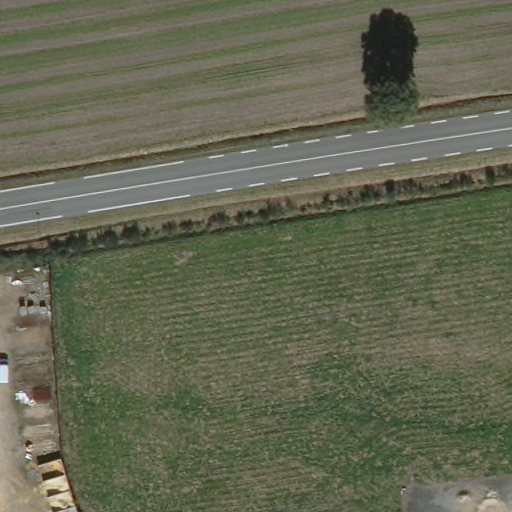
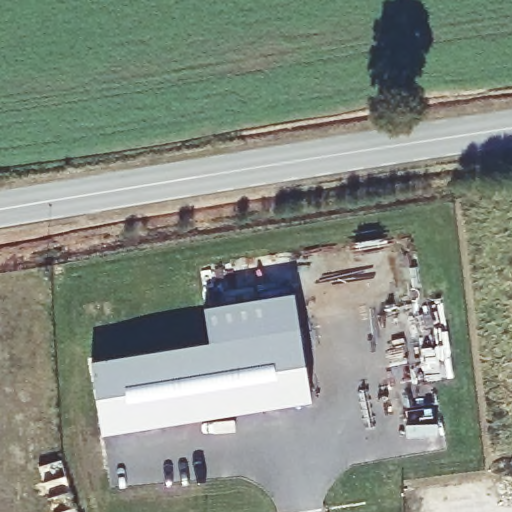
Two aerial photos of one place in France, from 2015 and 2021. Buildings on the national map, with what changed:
new [(295,292),(301,326),(271,330),(265,297),(295,292)]
new [(211,340),(205,306),(265,297),(271,330),(301,326),(312,399),(103,432),(92,359),(211,340)]

